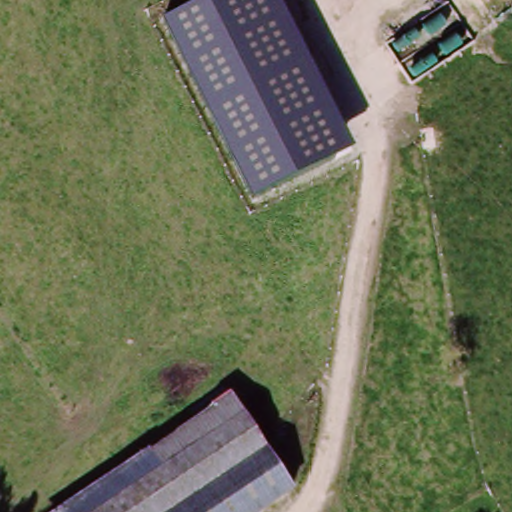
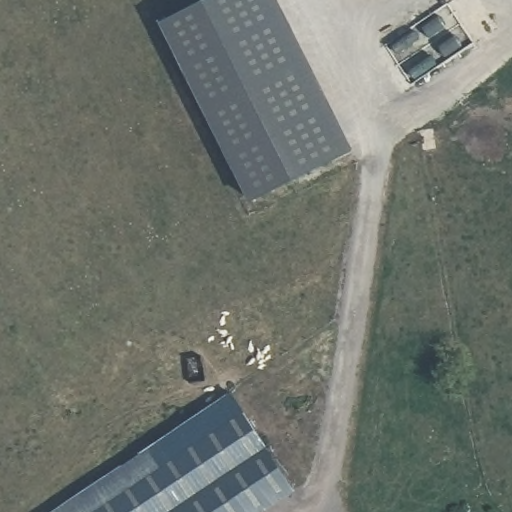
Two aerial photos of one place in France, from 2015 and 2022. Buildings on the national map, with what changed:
unchanged [(278,0),(352,150),(250,202),(159,25),(208,0),(278,0)]
unchanged [(137,450),(236,387),(297,491),(265,512),(39,512),(135,448),(137,450)]

